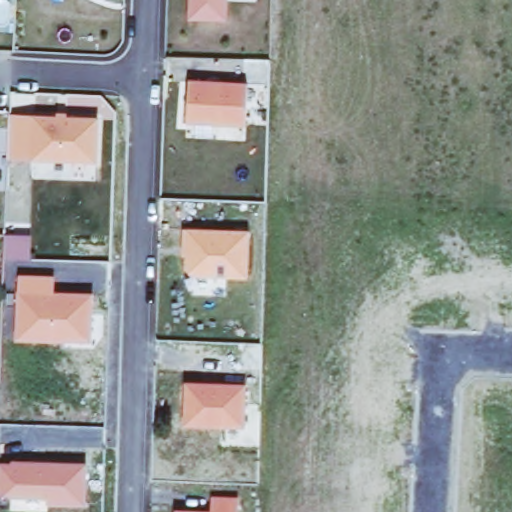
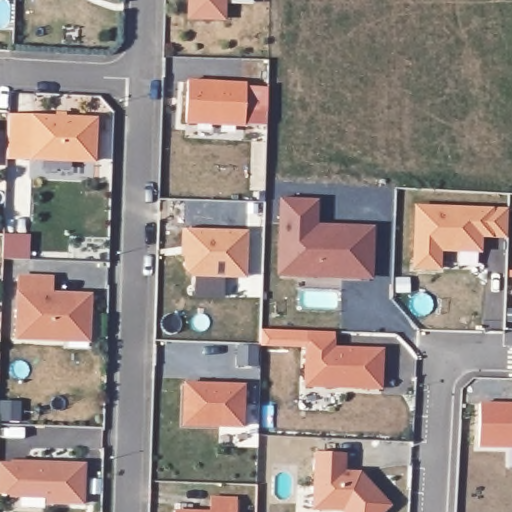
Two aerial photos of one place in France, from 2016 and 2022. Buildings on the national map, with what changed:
unchanged [(225,24),(191,22),(191,0),(226,0),(225,24)]
unchanged [(251,84),(249,125),(190,122),(192,81),(251,84)]
new [(34,116),(32,158),(7,157),(9,115),(34,116)]
unchanged [(97,118),(95,160),(32,158),(34,116),(97,118)]
new [(286,200),(319,201),(318,226),(376,227),(374,275),(345,274),(345,264),(303,263),(302,273),(284,272),(286,200)]
new [(419,203),(511,207),(510,233),(483,232),(483,248),(442,246),(442,265),(417,264),(419,203)]
unchanged [(195,280),(184,268),(184,255),(180,255),(180,229),(248,231),(248,281),(195,280)]
unchanged [(17,275),(56,275),(54,294),(92,296),(89,346),(15,342),(17,275)]
new [(311,330),(337,331),(337,347),(386,349),(385,388),(308,385),(311,330)]
unchanged [(246,427),(187,425),(188,384),(247,386),(246,427)]
new [(510,405),(512,405),(512,448),(480,447),(481,404),(510,405)]
new [(347,454),(346,472),(353,473),(353,476),(358,477),(386,504),(378,512),(346,512),(344,510),(315,508),(318,452),(347,454)]
unchanged [(46,497),(5,497),(0,495),(0,466),(12,465),(12,461),(87,463),(85,510),(47,508),(46,497)]
unchanged [(239,500),(239,512),(212,512),(212,499),(239,500)]

